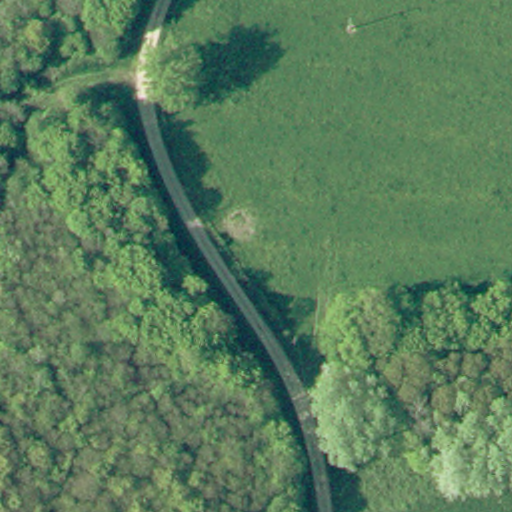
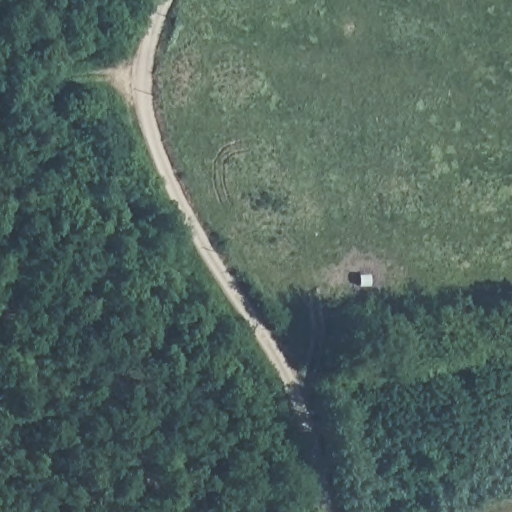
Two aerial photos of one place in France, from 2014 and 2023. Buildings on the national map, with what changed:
[]

